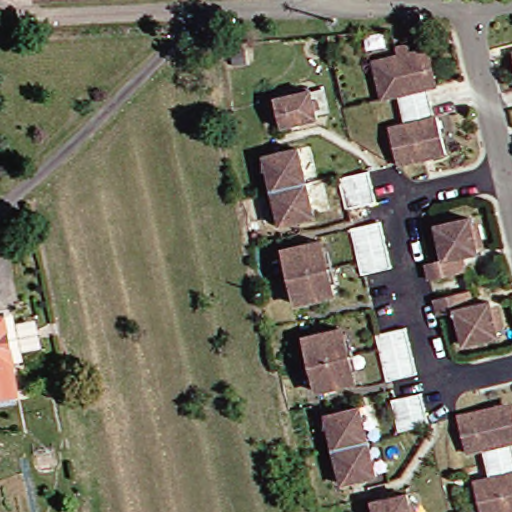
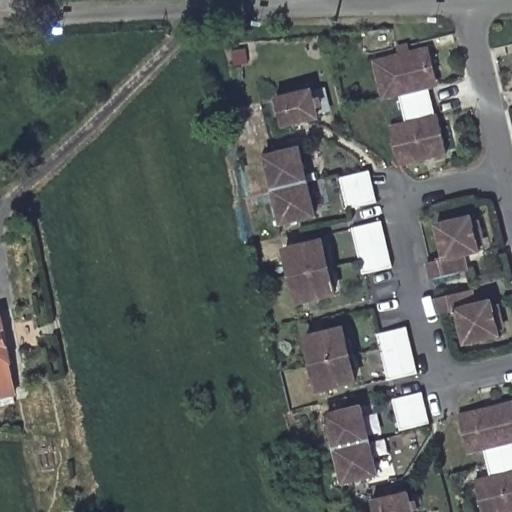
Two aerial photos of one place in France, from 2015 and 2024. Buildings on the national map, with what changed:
unchanged [(386,127),(401,124),(397,109),(394,95),(378,99),(369,62),(394,55),(392,47),(403,45),(405,53),(417,50),(426,87),(424,88),(427,102),(431,117),(433,116),(442,153),(395,165),(386,127)]
unchanged [(511,50),(512,50),(512,57),(511,50)]
unchanged [(318,118),(282,127),(275,99),(312,91),(318,118)]
unchanged [(260,157),(294,149),(303,183),(268,191),(260,157)]
unchanged [(352,208),(347,209),(344,194),(340,178),(370,171),(373,186),(377,202),(352,208)]
unchanged [(311,217),(276,225),(268,191),(303,183),(311,217)]
unchanged [(260,194),(264,209),(250,212),(247,198),(260,194)]
unchanged [(423,263),(440,259),(432,225),(466,217),(475,252),(460,255),(463,270),(455,273),(427,279),(423,263)]
unchanged [(358,274),(354,259),(351,244),(347,228),(377,221),(381,237),(384,252),(388,267),(358,274)]
unchanged [(323,268),(287,277),(280,250),(317,241),(323,268)]
unchanged [(330,295),(294,304),(287,277),(323,268),(330,295)]
unchanged [(495,336),(461,344),(452,311),(435,315),(431,299),(460,292),(468,290),(472,305),(487,301),(495,336)]
unchanged [(302,332),(338,323),(345,351),(308,360),(302,332)]
unchanged [(384,381),(380,365),(376,350),(373,335),(403,327),(406,343),(410,357),(414,373),(384,381)]
unchanged [(4,365),(10,395),(0,397),(0,335),(6,365),(4,365)]
unchanged [(351,378),(315,387),(308,360),(345,351),(351,378)]
unchanged [(401,431),(397,415),(393,399),(423,392),(427,408),(431,423),(401,431)]
unchanged [(481,478),(478,463),(474,449),(459,453),(450,415),(498,404),(507,441),(504,442),(508,456),(511,471),(512,471),(512,510),(504,512),(472,512),(466,482),(481,478)]
unchanged [(318,416),(352,408),(361,442),(326,450),(318,416)]
unchanged [(369,476),(334,485),(326,450),(361,442),(369,476)]
unchanged [(375,512),(373,502),(409,494),(413,512),(375,512)]

